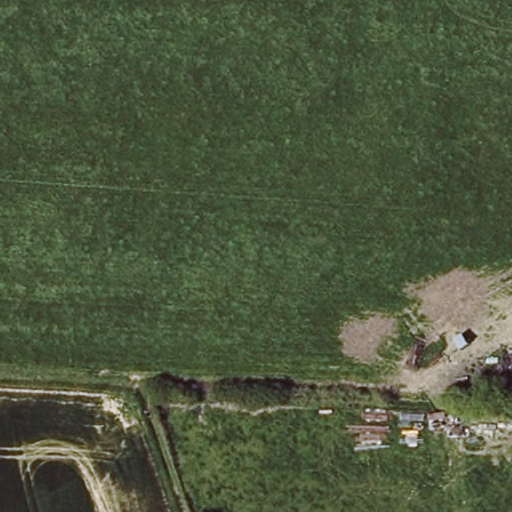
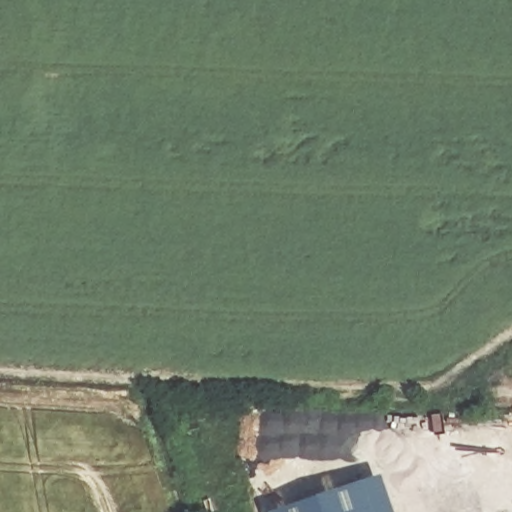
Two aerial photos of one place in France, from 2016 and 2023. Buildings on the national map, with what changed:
new [(392,512),(266,512),(378,474),(392,512)]

